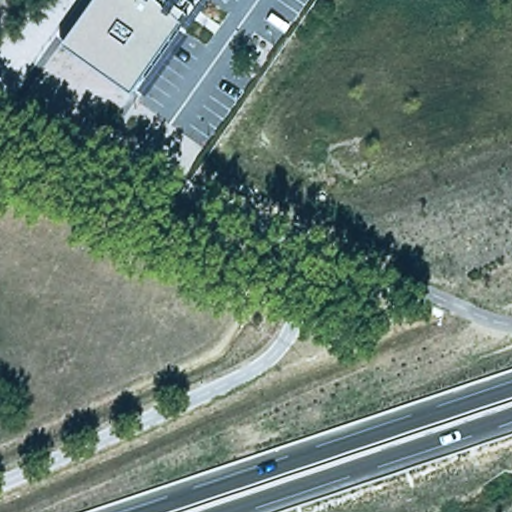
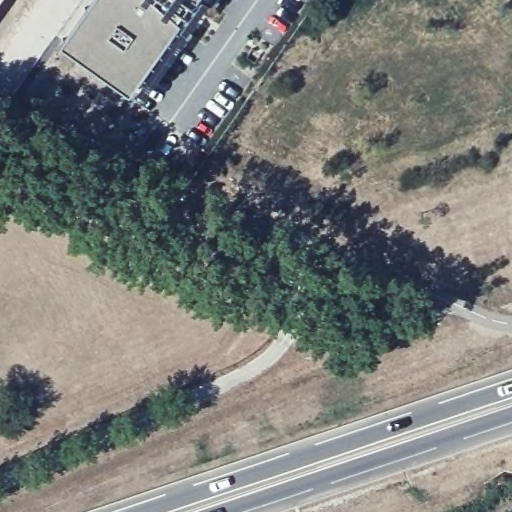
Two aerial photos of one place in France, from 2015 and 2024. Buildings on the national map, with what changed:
unchanged [(137,88),(65,37),(91,0),(199,0),(137,88)]

